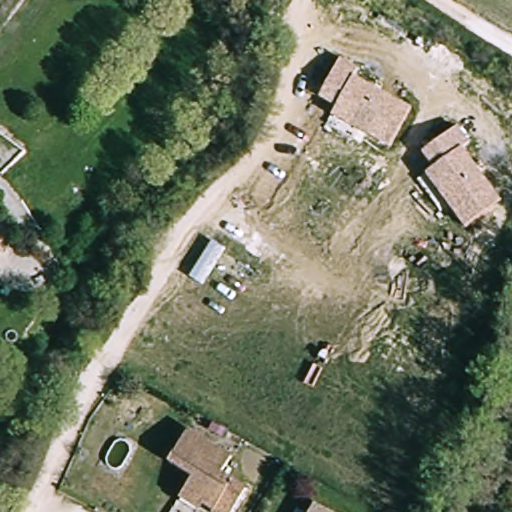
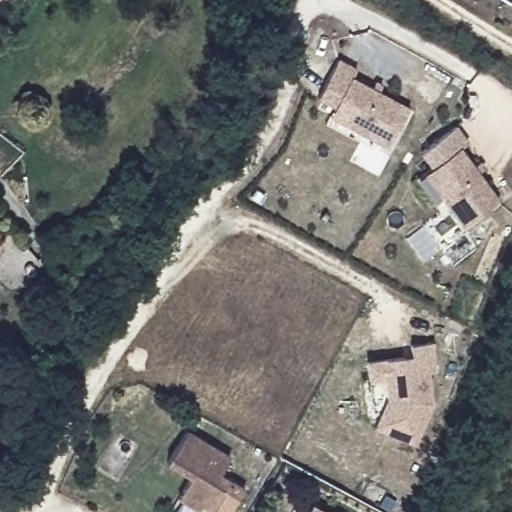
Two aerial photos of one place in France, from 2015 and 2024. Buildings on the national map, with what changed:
unchanged [(352,77),(408,107),(387,147),(330,117),(334,107),(318,100),(340,58),(357,67),(352,77)]
unchanged [(461,150),(500,202),(463,227),(427,174),(432,168),(422,153),(455,127),(468,142),(461,150)]
new [(0,261),(0,223),(12,241),(0,261)]
new [(414,358),(412,347),(435,345),(438,376),(431,377),(434,408),(414,446),(376,427),(391,397),(389,380),(371,382),(369,362),(414,358)]
unchanged [(234,512),(220,512),(223,502),(212,496),(205,511),(183,500),(197,476),(173,460),(190,436),(233,457),(224,472),(247,487),(234,512)]
unchanged [(312,502),(322,508),(329,512),(307,512),(312,502)]

